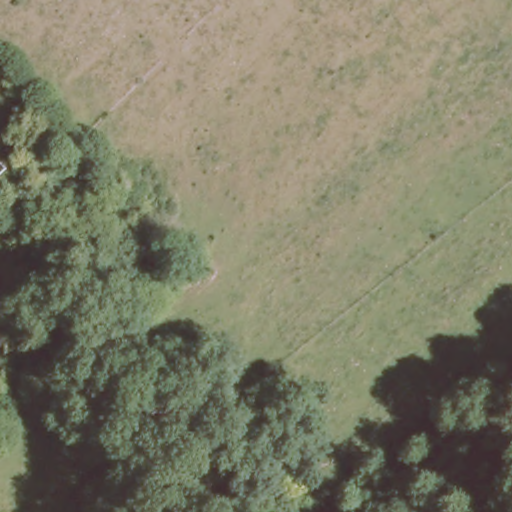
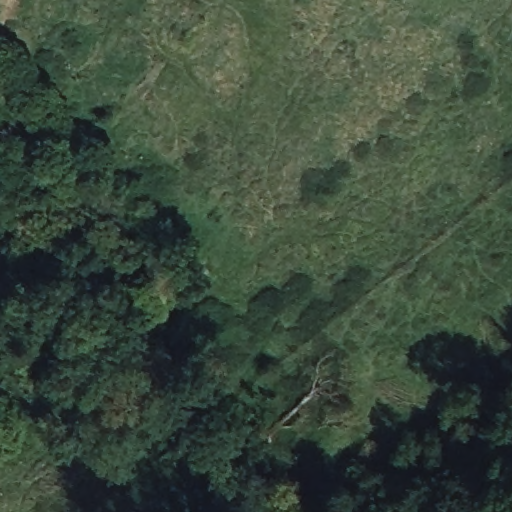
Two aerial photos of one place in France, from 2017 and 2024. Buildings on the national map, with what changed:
unchanged [(2,148),(27,125),(40,112),(59,134),(45,147),(36,136),(12,159),(2,148)]
unchanged [(0,170),(0,167),(2,169),(0,170)]

